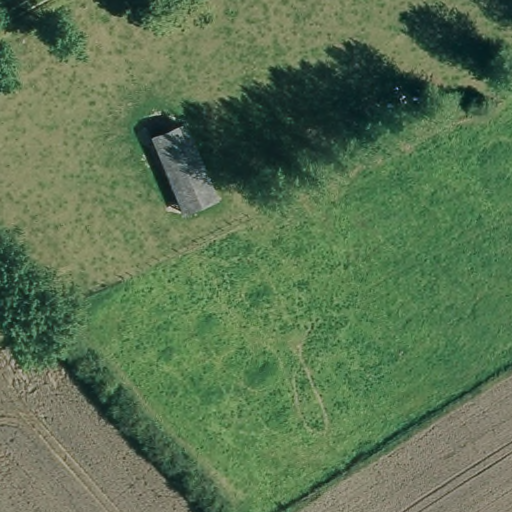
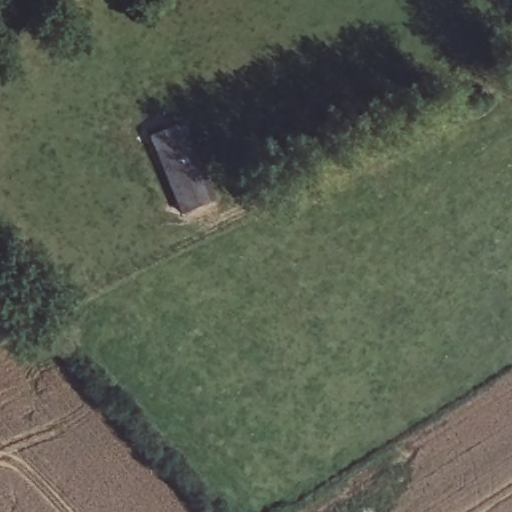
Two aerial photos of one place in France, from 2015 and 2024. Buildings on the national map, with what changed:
unchanged [(182,215),(145,142),(178,125),(215,199),(182,215)]

